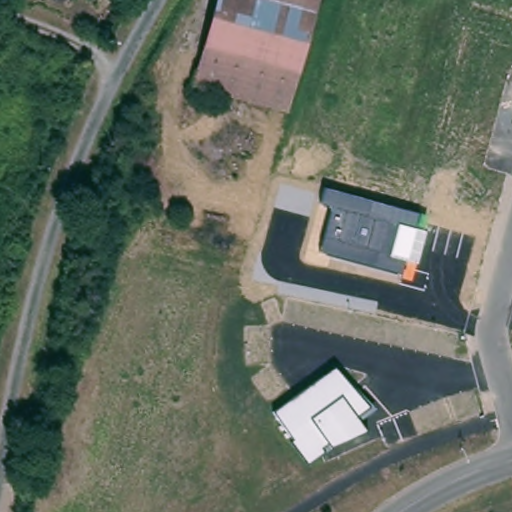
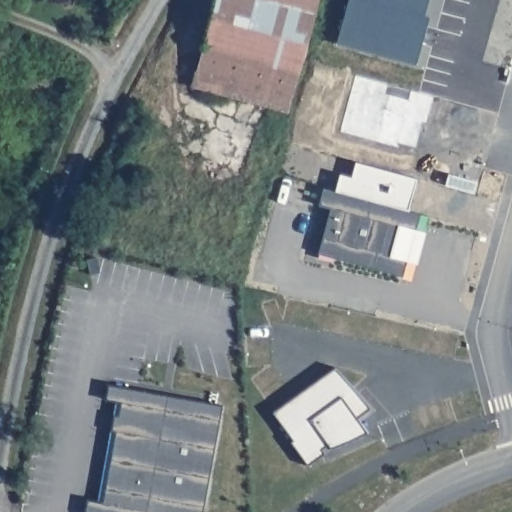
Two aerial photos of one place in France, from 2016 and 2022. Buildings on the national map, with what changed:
unchanged [(223,0),(319,0),(295,110),(288,109),(205,91),(223,0)]
new [(432,16),(420,66),(340,44),(351,0),(431,0),(427,15),(432,16)]
unchanged [(330,208),(320,205),(326,188),(430,217),(413,280),(319,254),(330,208)]
unchanged [(335,369),(373,407),(359,420),(367,430),(330,447),(307,463),(291,442),(295,439),(275,413),(335,369)]
new [(109,502),(124,504),(136,429),(132,428),(133,417),(137,417),(140,403),(125,401),(128,387),(229,403),(229,402),(231,402),(231,403),(241,405),(223,512),(107,512),(109,502)]

